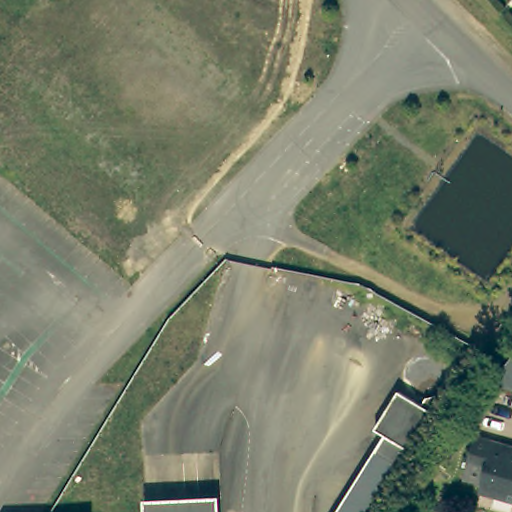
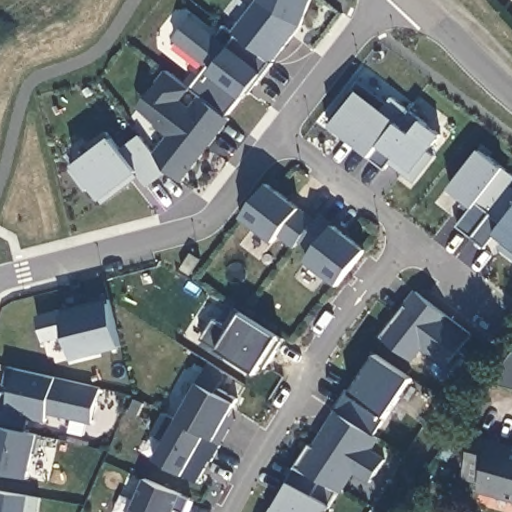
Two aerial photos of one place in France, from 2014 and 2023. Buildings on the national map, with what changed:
new [(190,110),(200,97),(191,90),(209,67),(175,40),(191,19),(215,38),(224,26),(233,33),(237,28),(257,2),(258,0),(311,0),(300,27),(272,64),(273,65),(250,95),(248,93),(243,99),(242,97),(227,117),(230,120),(217,136),(211,132),(197,149),(203,154),(181,182),(168,172),(155,155),(170,137),(157,127),(164,117),(144,102),(167,72),(190,89),(180,102),(190,110)]
new [(332,126),(334,122),(329,120),(358,81),(388,103),(392,97),(408,110),(398,124),(373,156),(332,126)]
new [(408,177),(391,163),(385,171),(370,160),(373,156),(398,124),(408,110),(441,135),(428,152),(433,157),(418,177),(414,182),(408,177)]
new [(103,204),(92,189),(88,192),(72,171),(94,154),(89,147),(108,133),(122,152),(142,137),(155,155),(168,172),(147,187),(139,177),(132,182),(103,204)]
new [(472,208),(450,191),(481,152),(512,175),(512,187),(471,239),(457,227),(472,208)]
new [(300,208),(315,220),(319,216),(334,226),(365,250),(338,286),(306,261),(293,247),(279,237),(273,242),(242,217),(268,184),(300,208)]
new [(472,208),(468,213),(460,207),(464,202),(472,208)]
new [(192,254),(201,260),(191,275),(182,270),(192,254)]
new [(405,306),(403,305),(413,291),(471,335),(459,352),(464,356),(452,372),(421,350),(413,362),(382,337),(405,306)]
new [(279,337),(284,339),(266,369),(261,366),(256,373),(220,350),(203,340),(215,321),(233,331),(243,316),(279,337)]
unchanged [(505,360),(512,350),(512,387),(490,381),(505,360)]
new [(333,410),(347,390),(351,392),(359,381),(355,377),(372,352),(412,380),(374,437),(333,410)]
new [(3,392),(18,395),(19,388),(5,385),(9,367),(47,375),(102,388),(93,423),(49,413),(47,421),(30,417),(27,432),(42,436),(38,454),(35,453),(29,478),(0,472),(0,406),(3,392)]
new [(230,430),(222,445),(179,421),(209,367),(226,377),(219,388),(239,400),(229,416),(236,420),(230,430)]
new [(198,483),(157,460),(167,442),(153,435),(166,413),(179,421),(222,445),(213,462),(211,461),(206,469),(198,483)]
new [(369,451),(384,461),(370,483),(353,472),(340,492),(295,467),(310,445),(314,448),(322,436),(328,440),(332,433),(328,431),(339,413),(378,438),(369,451)]
demolished [(436,416),(412,453),(397,445),(408,437),(409,437),(422,427),(423,426),(435,415),(436,416)]
unchanged [(512,454),(512,501),(478,491),(480,484),(463,478),(475,436),(512,447),(512,454)]
new [(327,512),(270,512),(280,495),(287,482),(295,467),(330,487),(339,492),(327,512)]
new [(191,498),(186,512),(180,512),(176,511),(175,512),(132,512),(146,479),(152,481),(191,498)]
new [(41,497),(39,512),(0,512),(0,491),(41,497)]

